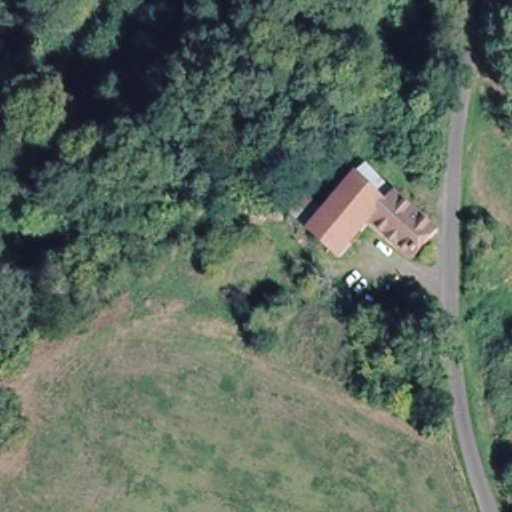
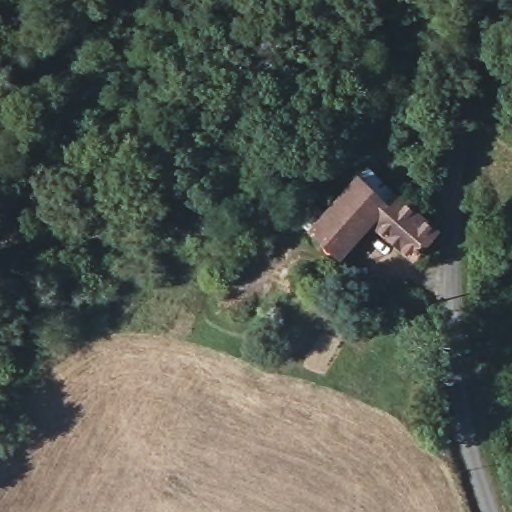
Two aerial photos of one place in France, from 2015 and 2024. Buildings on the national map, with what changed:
unchanged [(342,196),(364,167),(441,229),(418,258),(374,222),(344,259),(312,233),(342,196)]

